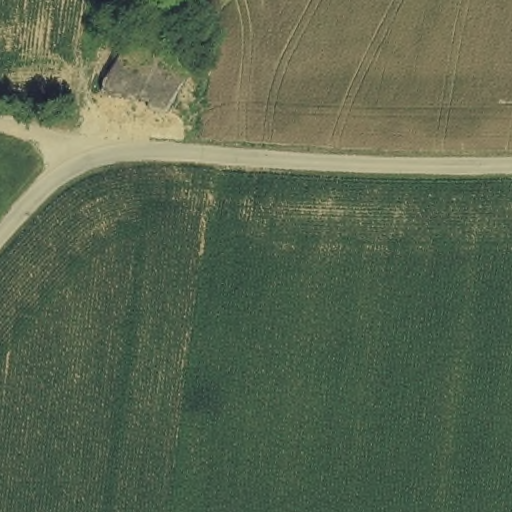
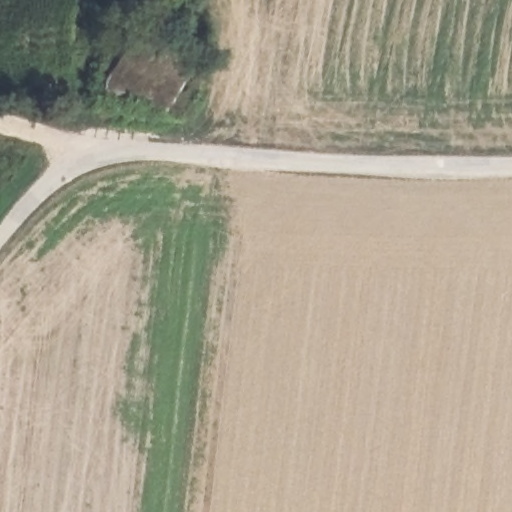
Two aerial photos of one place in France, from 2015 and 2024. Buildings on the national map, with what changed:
unchanged [(196,44),(167,110),(105,88),(132,25),(196,44)]

